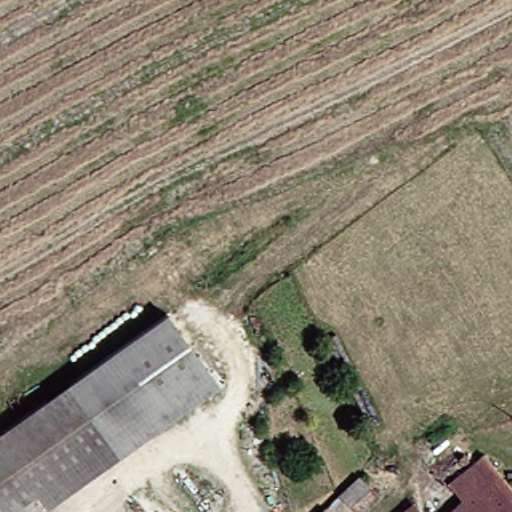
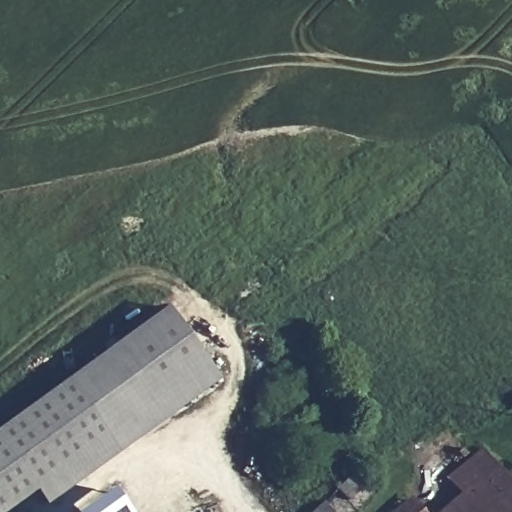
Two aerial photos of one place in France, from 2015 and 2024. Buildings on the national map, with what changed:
unchanged [(39,483),(7,512),(0,512),(0,428),(151,302),(207,368),(52,498),(39,483)]
unchanged [(443,485),(474,457),(512,500),(512,512),(442,512),(454,500),(443,485)]
unchanged [(373,493),(354,508),(345,498),(364,483),(373,493)]
new [(128,512),(81,512),(112,490),(128,512)]
unchanged [(412,512),(393,512),(404,502),(412,512)]
unchanged [(326,512),(328,510),(330,512),(326,512)]

